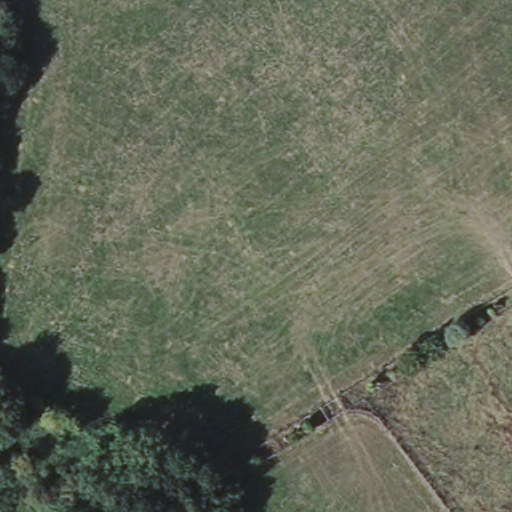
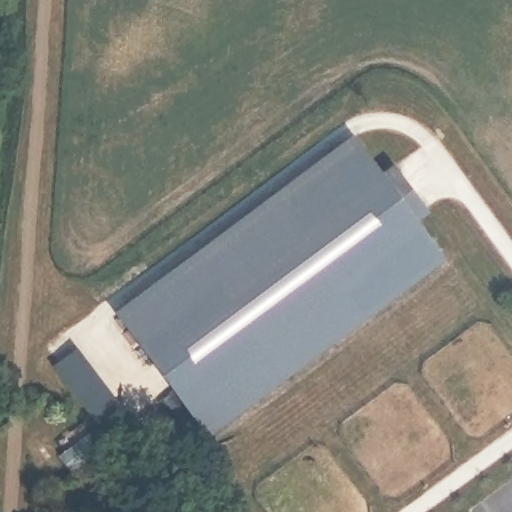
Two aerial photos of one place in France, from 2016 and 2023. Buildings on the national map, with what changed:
new [(347,141),(377,178),(390,167),(428,217),(415,229),(442,265),(208,451),(118,320),(347,141)]
new [(76,349),(120,412),(96,429),(52,368),(76,349)]

